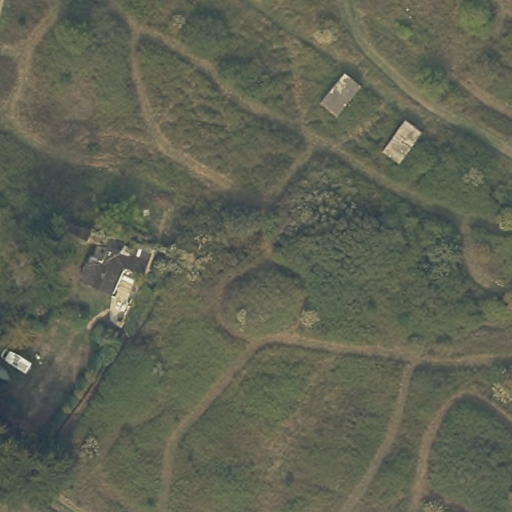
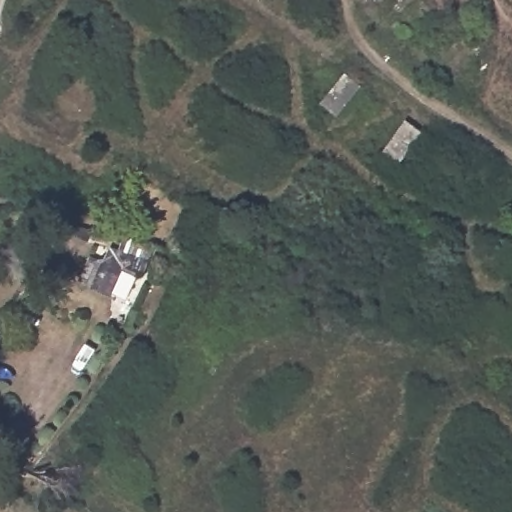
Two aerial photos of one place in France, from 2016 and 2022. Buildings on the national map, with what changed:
unchanged [(318,102),(344,68),(362,86),(333,119),(318,102)]
unchanged [(405,117),(423,132),(398,166),(379,151),(405,117)]
unchanged [(50,212),(45,227),(30,222),(35,208),(50,212)]
unchanged [(96,241),(144,252),(126,299),(74,283),(96,241)]

